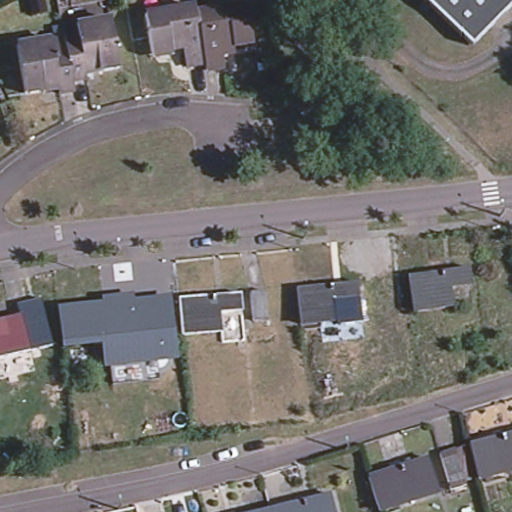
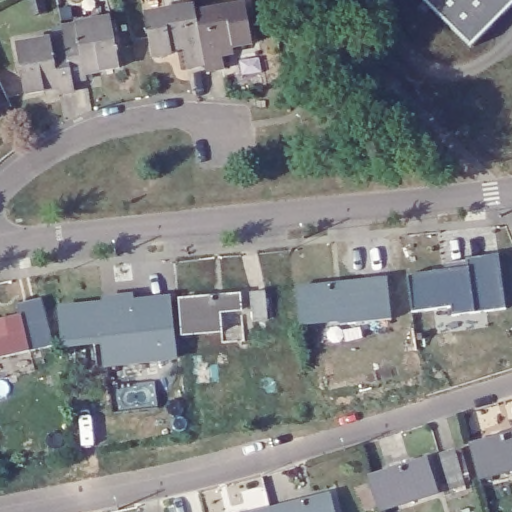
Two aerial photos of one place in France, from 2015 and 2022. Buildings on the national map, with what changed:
unchanged [(427,3),(430,0),(512,0),(512,21),(479,56),(427,3)]
unchanged [(181,68),(178,49),(149,53),(143,14),(193,7),(194,15),(202,64),(181,68)]
unchanged [(203,71),(202,64),(194,15),(246,7),(251,46),(218,51),(221,69),(203,71)]
unchanged [(109,19),(116,69),(96,71),(95,68),(83,70),(83,80),(69,82),(63,36),(61,26),(109,19)]
unchanged [(41,92),(22,95),(14,43),(63,36),(69,82),(70,91),(55,93),(54,84),(40,86),(41,92)]
new [(472,271),(446,274),(444,263),(466,261),(466,258),(499,254),(507,308),(476,312),(476,314),(453,317),(452,310),(415,314),(410,278),(472,271)]
unchanged [(199,266),(201,276),(178,278),(178,268),(199,266)]
demolished [(456,309),(415,314),(410,278),(472,271),(474,287),(476,306),(456,309)]
unchanged [(343,328),(342,323),(303,327),(298,290),(361,285),(363,301),(364,321),(365,325),(343,328)]
unchanged [(184,332),(181,296),(243,291),(243,308),(245,327),(224,329),(184,332)]
unchanged [(178,355),(108,363),(105,339),(66,343),(63,307),(137,300),(137,301),(172,297),(178,355)]
unchanged [(273,326),(258,328),(253,300),(269,298),(273,326)]
unchanged [(12,344),(15,356),(0,359),(0,318),(5,317),(12,344)]
unchanged [(481,485),(473,451),(512,442),(512,478),(481,485)]
unchanged [(443,461),(459,457),(469,492),(453,497),(443,461)]
unchanged [(379,512),(377,512),(368,478),(425,460),(430,476),(436,495),(416,501),(379,512)]
unchanged [(245,488),(266,483),(286,478),(289,487),(269,492),(248,497),(245,488)]
unchanged [(269,510),(329,496),(333,511),(333,512),(270,512),(269,510)]
unchanged [(269,510),(270,512),(263,512),(269,510)]

